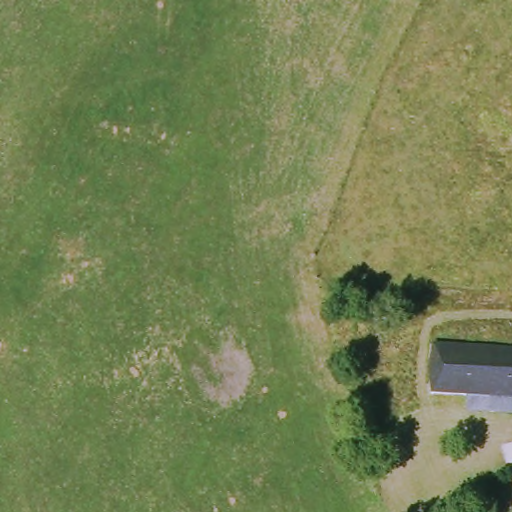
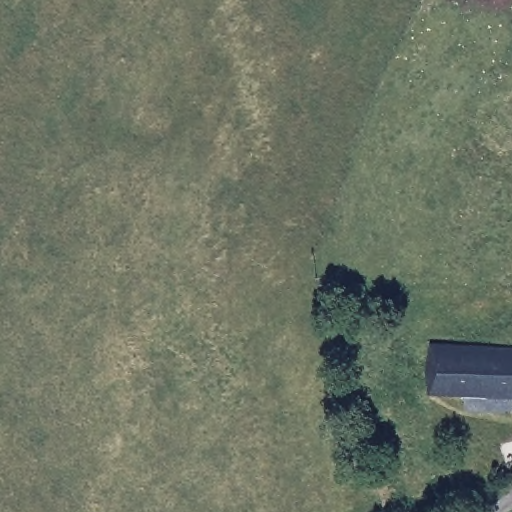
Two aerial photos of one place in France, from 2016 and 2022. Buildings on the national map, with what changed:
unchanged [(470,403),(468,395),(426,388),(430,342),(512,348),(512,407),(500,407),(470,403)]

